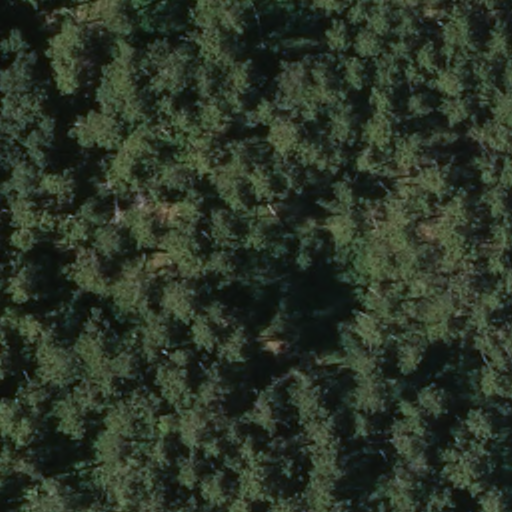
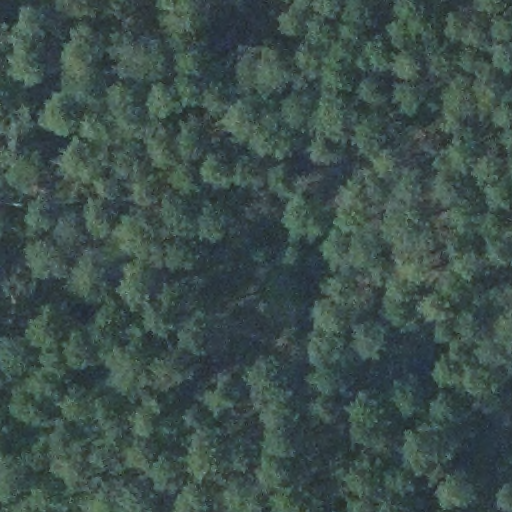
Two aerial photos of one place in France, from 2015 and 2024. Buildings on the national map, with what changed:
[]

